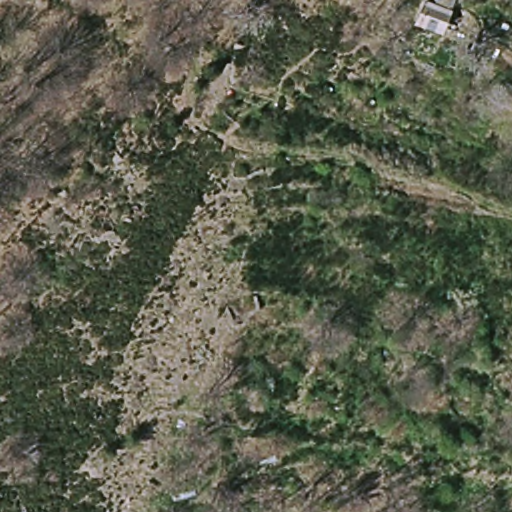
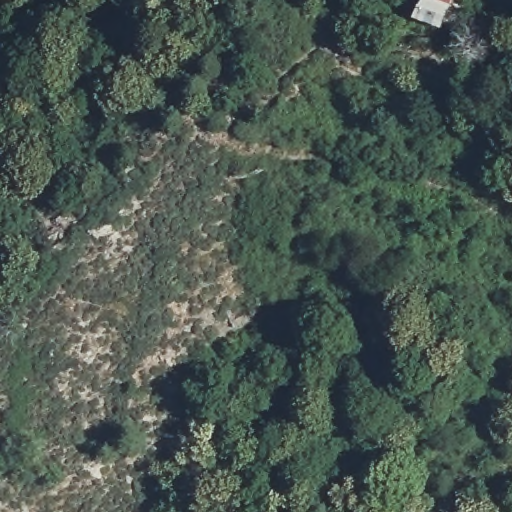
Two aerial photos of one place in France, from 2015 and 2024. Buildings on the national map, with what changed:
unchanged [(447,25),(420,15),(423,0),(449,0),(455,1),(447,25)]

